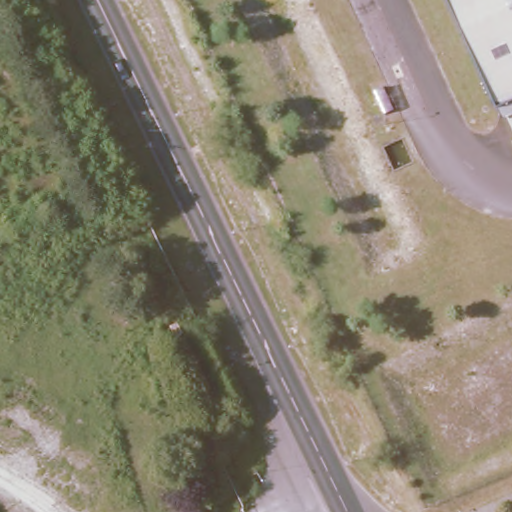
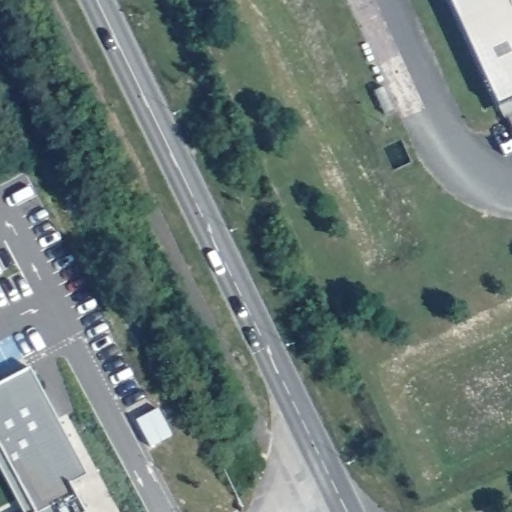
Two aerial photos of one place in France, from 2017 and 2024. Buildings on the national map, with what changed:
unchanged [(453,0),(512,0),(512,114),(503,118),(453,0)]
unchanged [(201,410),(165,341),(176,335),(202,383),(213,404),(208,406),(201,410)]
new [(0,456),(0,386),(30,370),(92,487),(60,504),(64,512),(24,512),(0,456)]
new [(172,435),(151,446),(137,420),(158,408),(172,435)]

